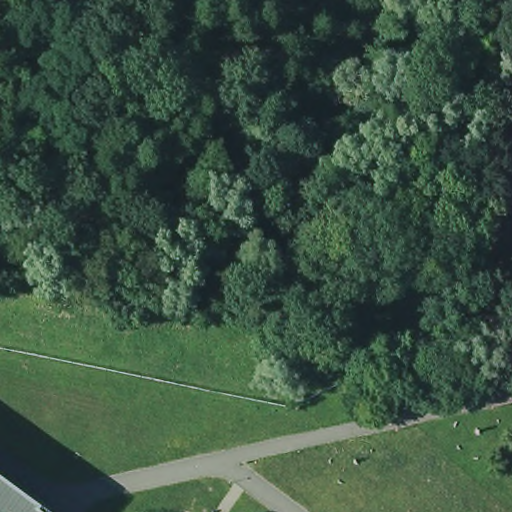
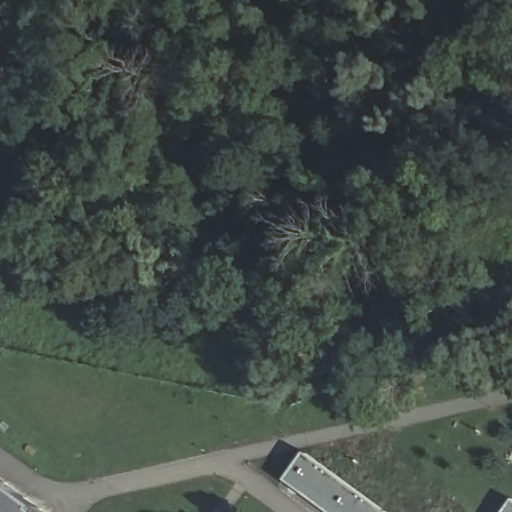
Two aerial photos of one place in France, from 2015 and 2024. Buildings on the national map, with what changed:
new [(387,512),(328,512),(284,480),(305,452),(387,512)]
unchanged [(48,512),(0,512),(0,476),(48,512)]
new [(512,499),(512,512),(503,512),(512,499)]

